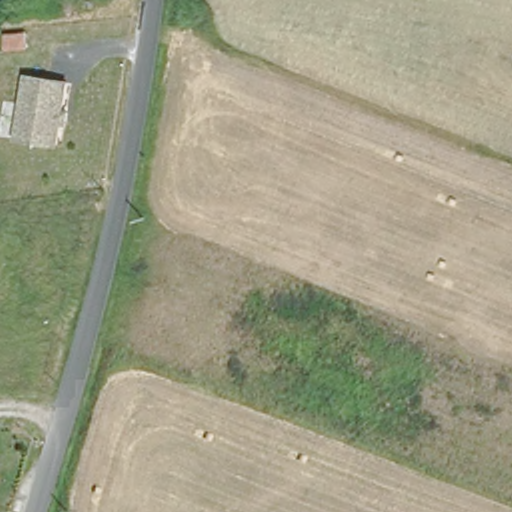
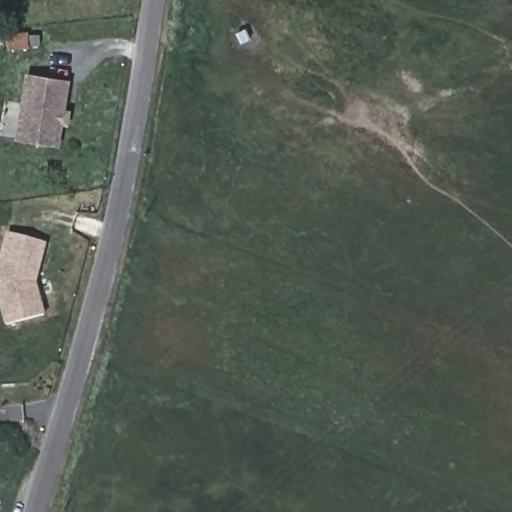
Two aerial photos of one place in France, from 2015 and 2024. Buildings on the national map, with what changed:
unchanged [(65,125),(60,126),(57,142),(56,146),(41,145),(17,141),(19,131),(25,78),(65,83),(61,113),(67,114),(65,125)]
new [(0,305),(0,261),(7,234),(47,244),(37,283),(46,316),(5,327),(0,305)]

